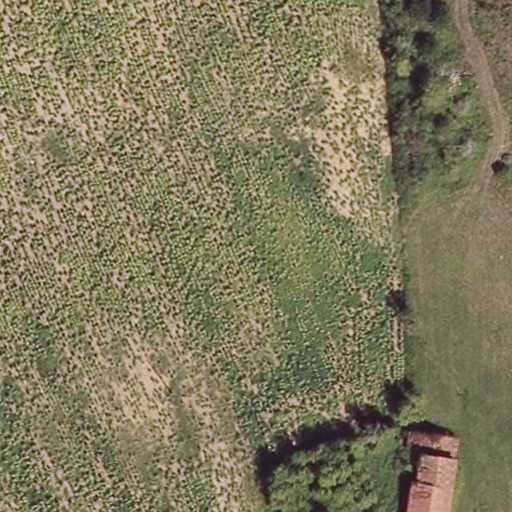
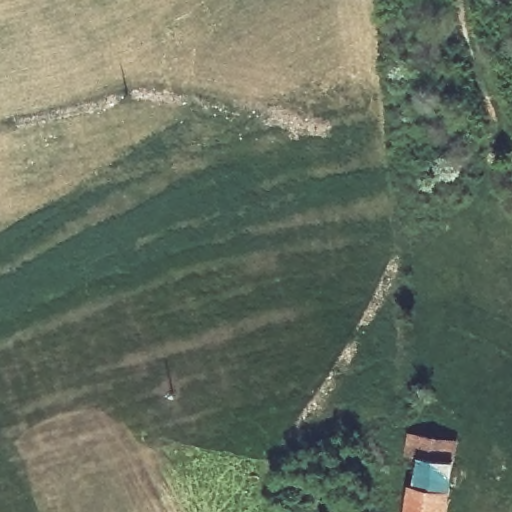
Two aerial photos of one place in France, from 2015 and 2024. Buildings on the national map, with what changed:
unchanged [(426,465),(422,488),(414,486),(416,478),(410,476),(414,445),(460,449),(457,468),(426,465)]
unchanged [(457,468),(452,512),(412,512),(415,493),(422,495),(422,488),(426,465),(457,468)]

